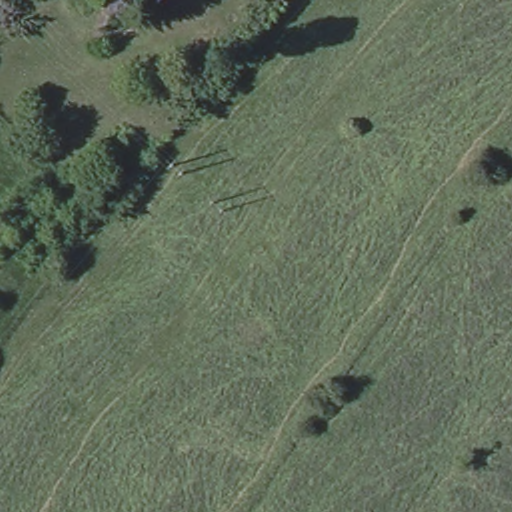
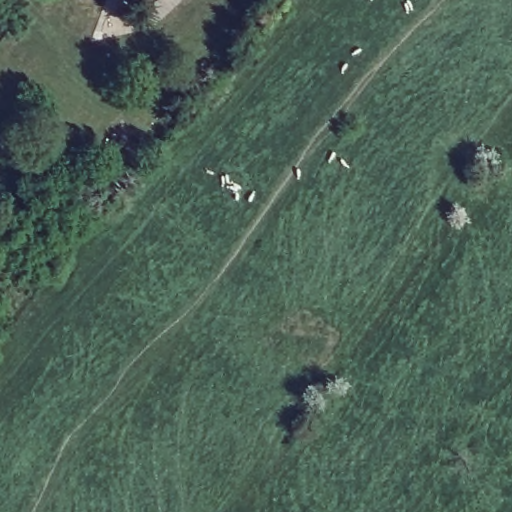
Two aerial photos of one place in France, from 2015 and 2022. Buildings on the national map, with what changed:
unchanged [(130,0),(132,0),(131,1),(130,0)]

